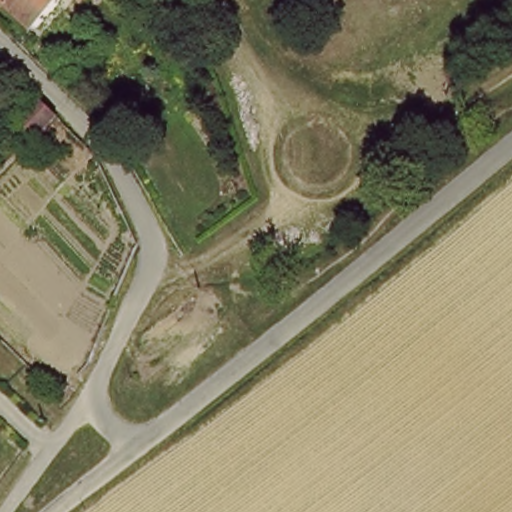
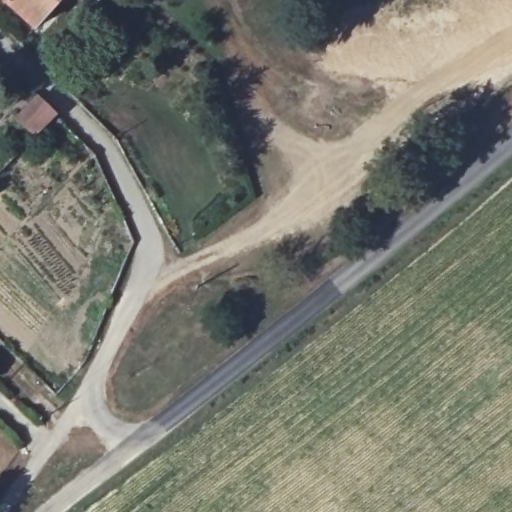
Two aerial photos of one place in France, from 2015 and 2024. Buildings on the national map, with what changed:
unchanged [(32,29),(4,0),(51,0),(56,6),(32,29)]
unchanged [(51,0),(63,0),(56,6),(51,0)]
unchanged [(78,0),(86,0),(82,4),(78,0)]

